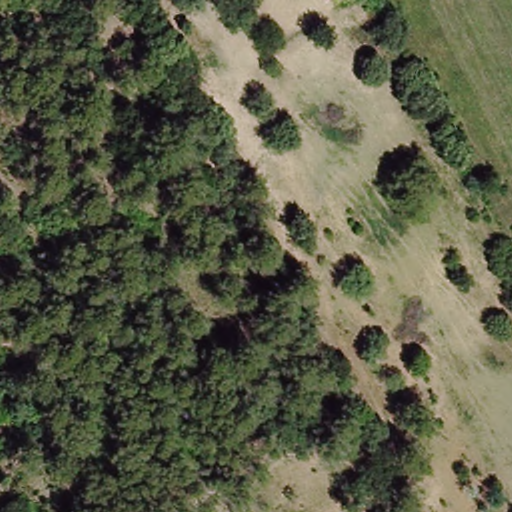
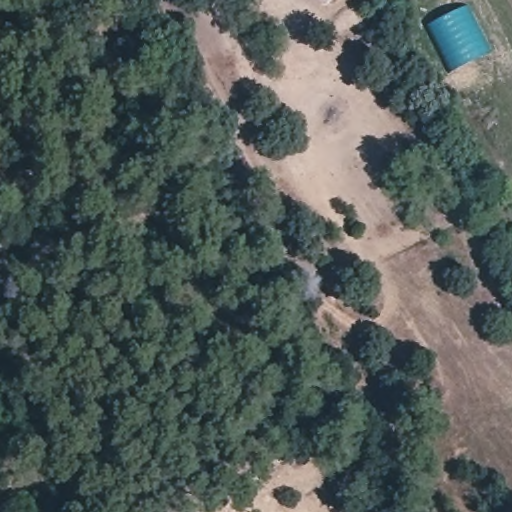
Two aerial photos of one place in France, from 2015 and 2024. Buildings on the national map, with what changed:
new [(467,2),(492,51),(448,72),(424,24),(467,2)]

